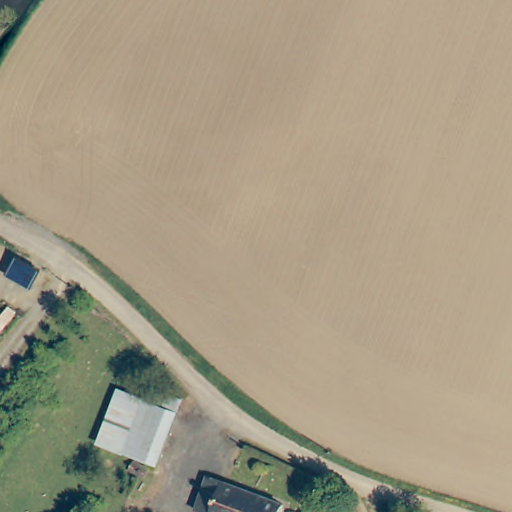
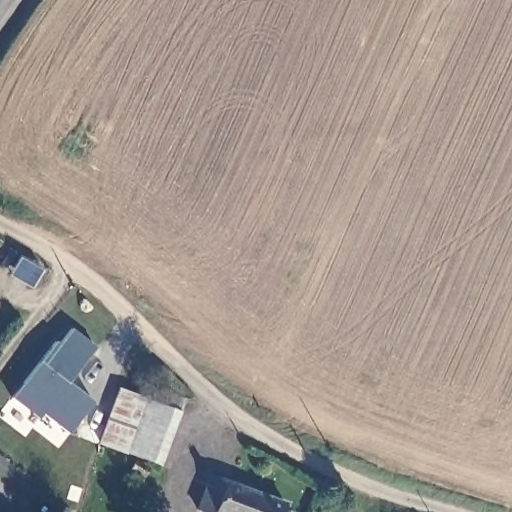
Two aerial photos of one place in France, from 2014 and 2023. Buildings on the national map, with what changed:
new [(69,382),(94,401),(68,432),(42,413),(38,418),(11,398),(56,340),(60,344),(71,328),(95,345),(69,382)]
unchanged [(93,430),(120,389),(141,402),(149,406),(154,394),(180,408),(172,421),(143,469),(126,459),(115,452),(111,450),(89,437),(93,430)]
unchanged [(286,512),(201,512),(213,478),(290,500),(286,512)]

